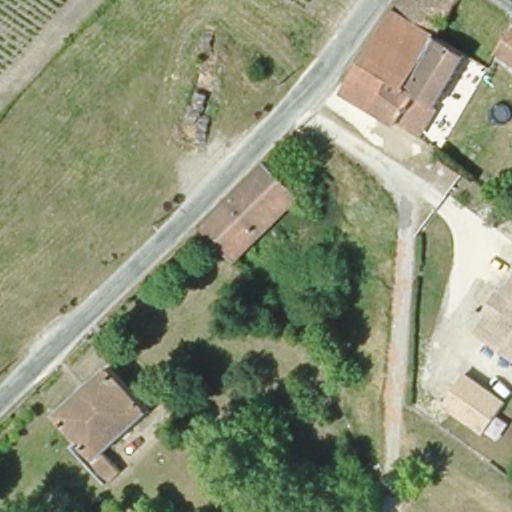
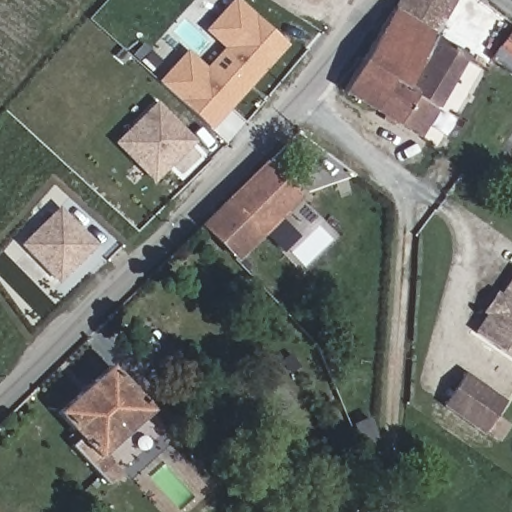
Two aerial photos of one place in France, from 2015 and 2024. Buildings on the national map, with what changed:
new [(231,0),(241,0),(289,44),(211,131),(157,82),(190,51),(205,67),(223,47),(205,29),(231,0)]
unchanged [(423,31),(372,111),(345,94),(403,0),(461,0),(435,39),(423,31)]
unchanged [(417,140),(372,111),(423,31),(435,39),(466,58),(417,140)]
unchanged [(500,50),(512,34),(512,59),(500,50)]
new [(155,101),(194,139),(153,179),(115,141),(155,101)]
unchanged [(265,165),(297,198),(235,258),(205,221),(265,165)]
new [(53,276),(20,243),(57,206),(94,243),(66,270),(56,280),(53,276)]
unchanged [(476,334),(491,313),(498,313),(503,306),(502,299),(512,284),(512,359),(476,334)]
unchanged [(150,408),(103,452),(120,471),(105,484),(72,447),(76,444),(70,436),(75,432),(58,412),(110,365),(150,408)]
unchanged [(488,435),(446,408),(465,379),(507,406),(488,435)]

